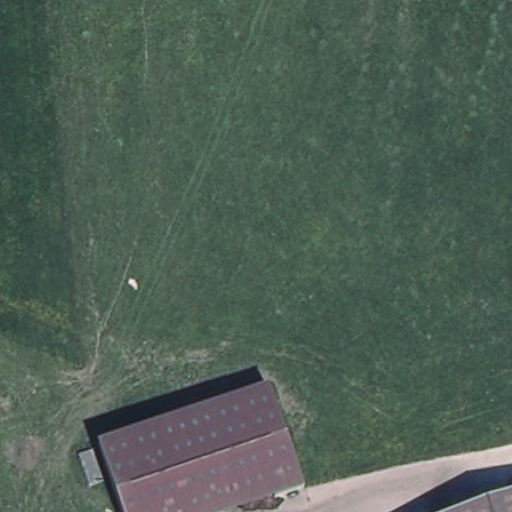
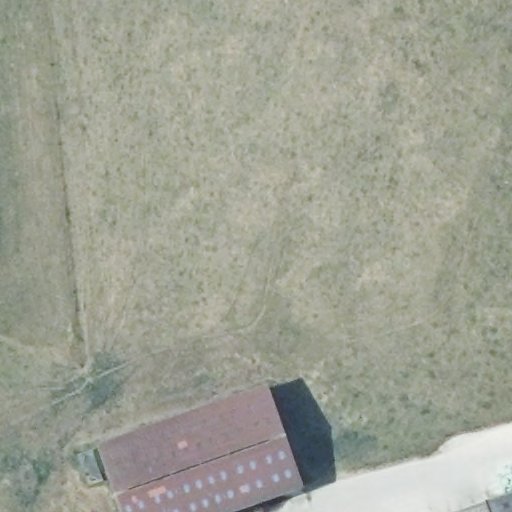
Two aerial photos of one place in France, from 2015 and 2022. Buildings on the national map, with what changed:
unchanged [(221,512),(122,512),(96,441),(267,386),(301,485),(221,512)]
unchanged [(512,512),(446,512),(512,490),(512,512)]

